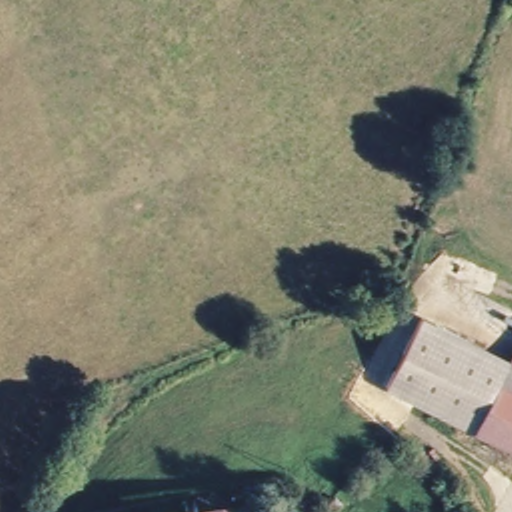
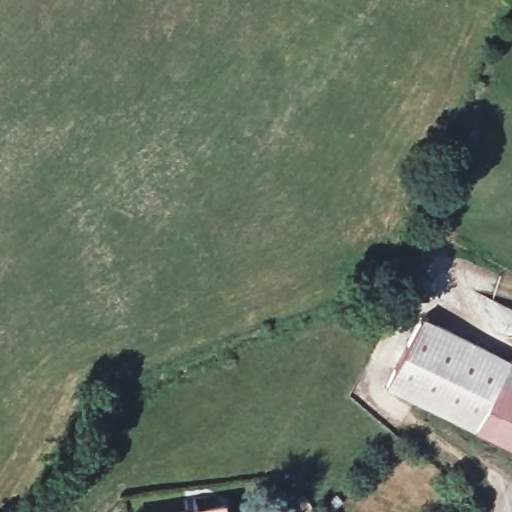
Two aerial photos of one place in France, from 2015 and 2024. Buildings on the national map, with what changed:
unchanged [(394,394),(428,324),(512,367),(512,375),(482,438),(394,394)]
unchanged [(512,375),(512,451),(482,438),(512,375)]
unchanged [(207,512),(216,511),(217,512),(207,512)]

